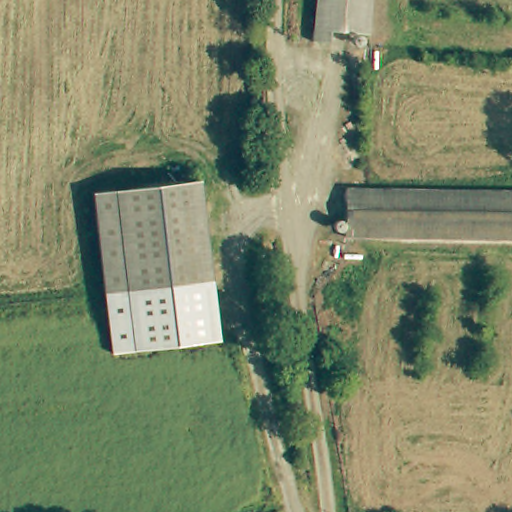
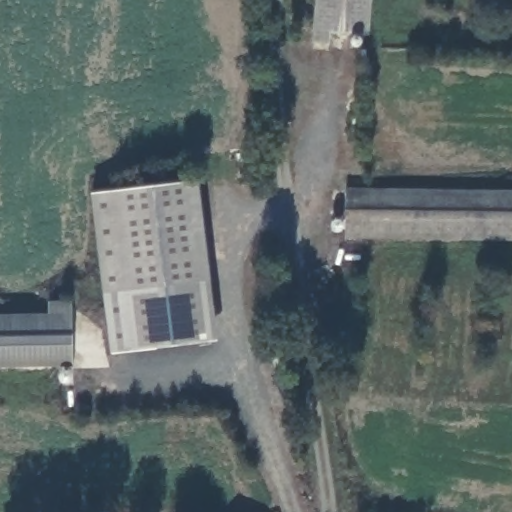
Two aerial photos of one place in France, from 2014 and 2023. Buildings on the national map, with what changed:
unchanged [(308,27),(311,0),(359,0),(356,35),(323,30),(321,45),(301,42),(303,27),(308,27)]
unchanged [(191,184),(204,283),(107,295),(94,197),(191,184)]
unchanged [(512,235),(348,230),(348,185),(512,190),(512,235)]
unchanged [(107,295),(204,283),(211,341),(114,352),(107,295)]
new [(49,312),(49,301),(72,301),(74,367),(0,368),(0,314),(49,312)]

